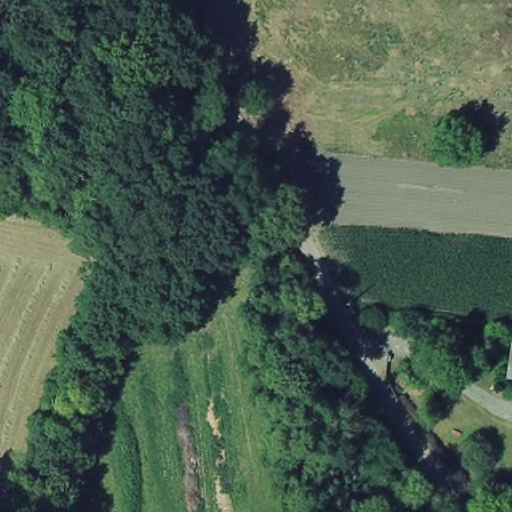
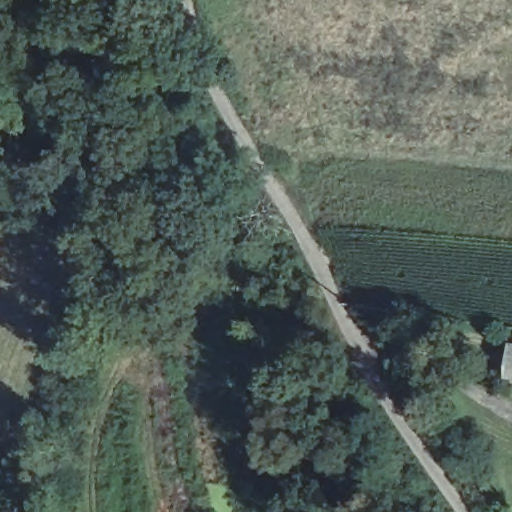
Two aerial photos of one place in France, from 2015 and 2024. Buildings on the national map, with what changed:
unchanged [(510,339),(512,339),(512,367),(508,366),(510,339)]

